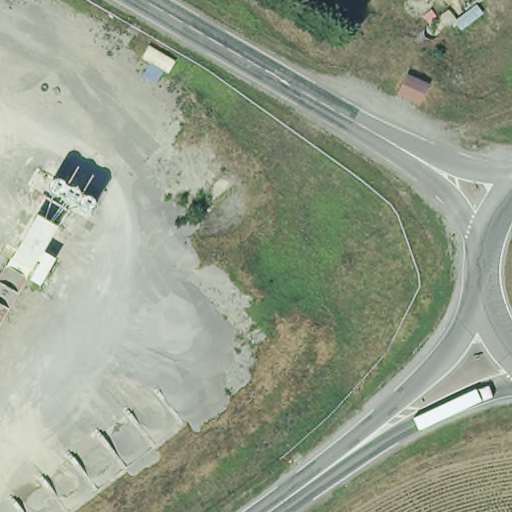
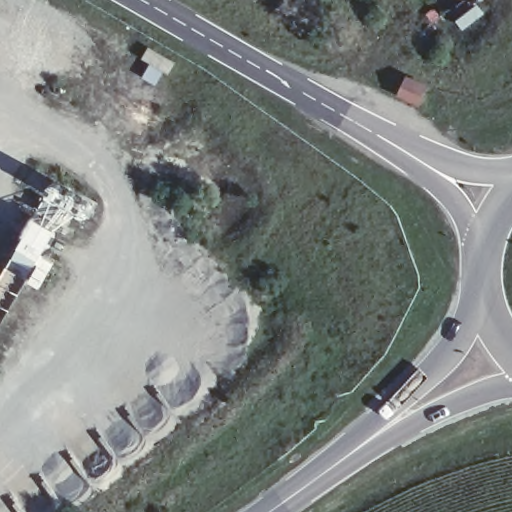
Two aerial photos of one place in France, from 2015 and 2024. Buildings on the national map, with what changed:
unchanged [(432,86),(420,108),(398,94),(408,75),(432,86)]

